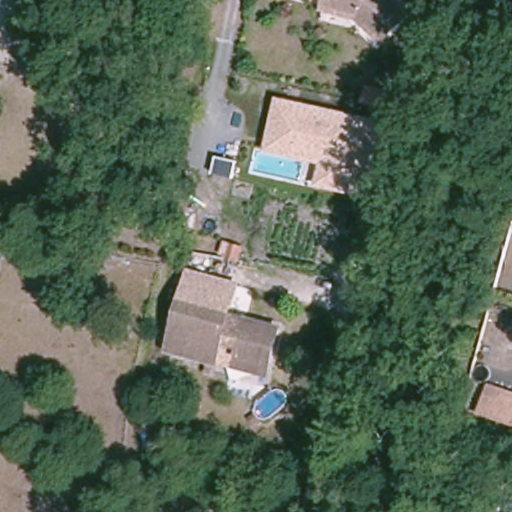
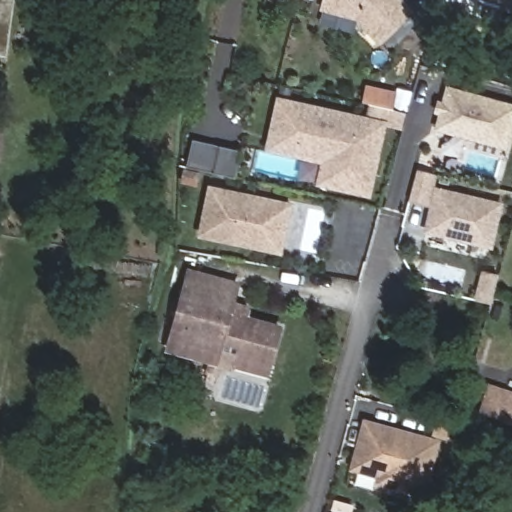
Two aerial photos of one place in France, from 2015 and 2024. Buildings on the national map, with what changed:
unchanged [(386,40),(352,7),(326,0),(403,0),(414,11),(386,40)]
unchanged [(495,0),(512,0),(512,1),(511,5),(495,0)]
unchanged [(393,109),(359,102),(363,83),(396,89),(393,109)]
new [(432,111),(435,99),(441,101),(446,85),(512,102),(512,127),(506,149),(434,130),(437,113),(432,111)]
unchanged [(266,151),(276,96),(382,120),(367,196),(315,185),(320,163),(266,151)]
new [(408,202),(417,169),(437,174),(434,187),(503,203),(492,249),(423,231),(427,206),(408,202)]
new [(281,254),(196,237),(207,184),(292,201),(281,254)]
unchanged [(0,269),(0,258),(2,259),(0,269)]
unchanged [(191,269),(239,282),(230,316),(228,316),(182,303),(191,269)]
unchanged [(236,365),(237,356),(241,347),(221,342),(216,362),(170,350),(182,303),(228,316),(230,316),(248,320),(278,329),(268,365),(267,374),(236,365)]
unchanged [(476,415),(485,388),(512,396),(512,426),(476,415)]
new [(350,470),(362,418),(440,440),(426,491),(407,486),(405,492),(373,483),(376,477),(350,470)]
unchanged [(512,428),(512,449),(506,447),(512,428)]

